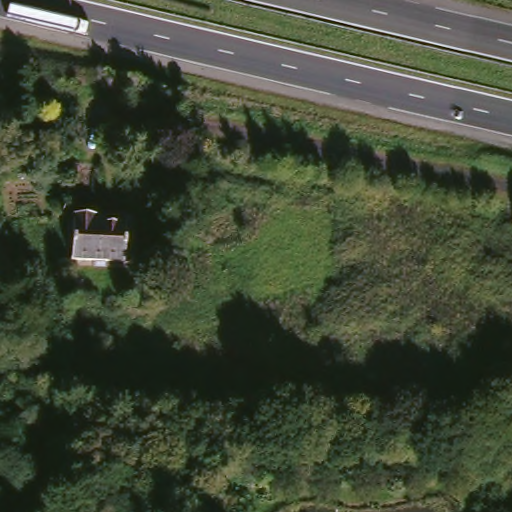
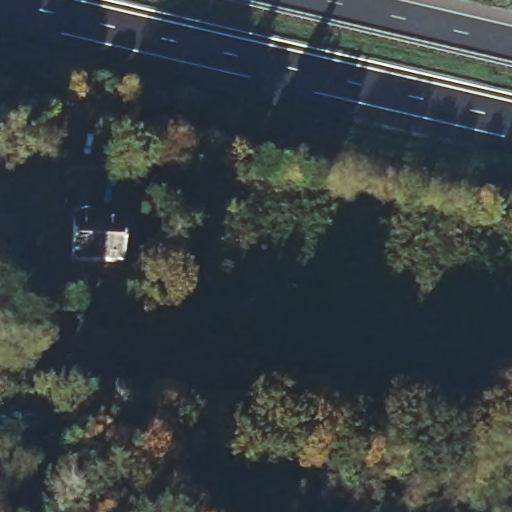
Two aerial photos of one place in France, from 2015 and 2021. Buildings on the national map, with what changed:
unchanged [(70,258),(71,212),(95,213),(95,225),(116,226),(115,259),(70,258)]

